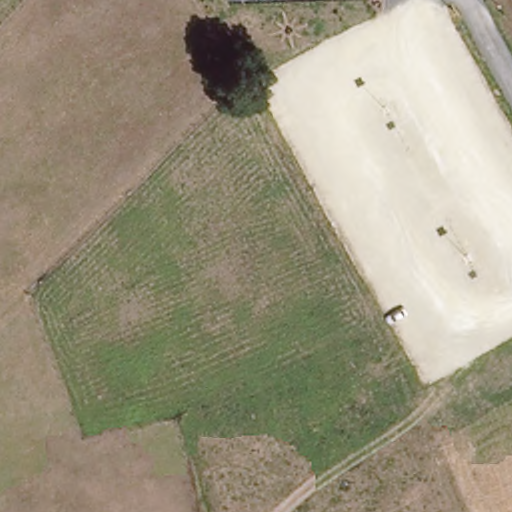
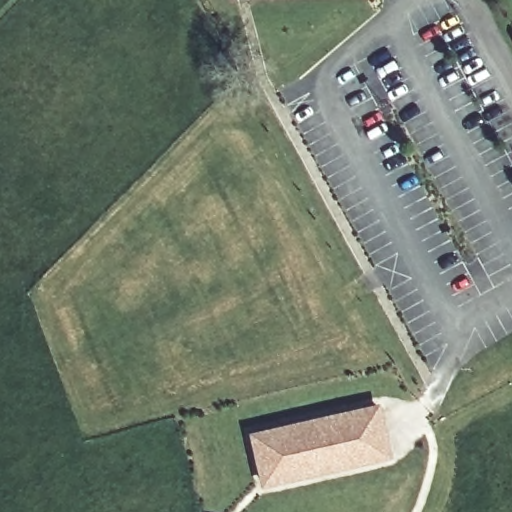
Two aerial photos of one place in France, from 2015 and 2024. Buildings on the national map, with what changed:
new [(395,458),(262,487),(249,432),(383,402),(395,458)]

